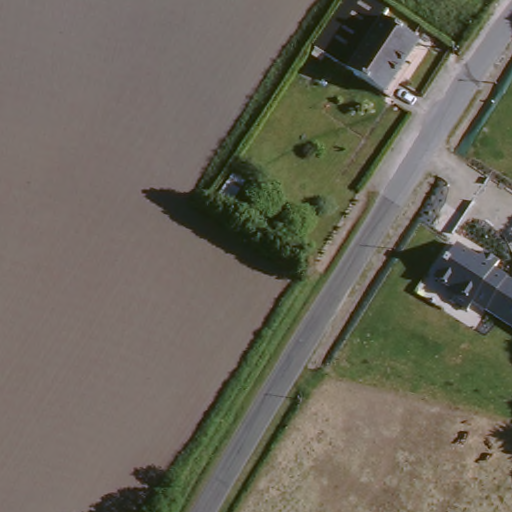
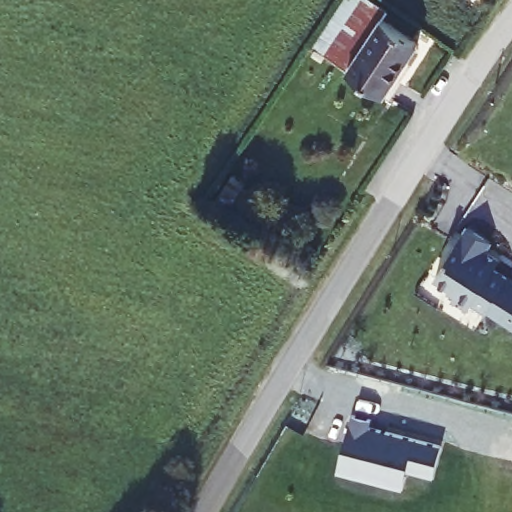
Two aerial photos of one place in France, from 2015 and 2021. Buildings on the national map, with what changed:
unchanged [(310,45),(339,0),(360,0),(380,13),(377,17),(412,40),(407,48),(413,52),(386,94),(345,67),(310,45)]
unchanged [(247,187),(260,196),(243,221),(230,213),(247,187)]
unchanged [(475,255),(482,250),(494,258),(490,264),(512,277),(512,324),(434,278),(460,244),(475,255)]
new [(353,415),(373,420),(372,428),(443,446),(435,477),(409,471),(404,489),(383,484),(385,477),(362,472),(360,477),(340,471),(353,415)]

